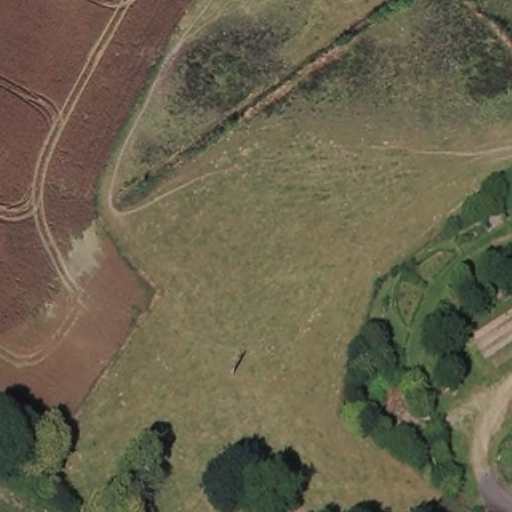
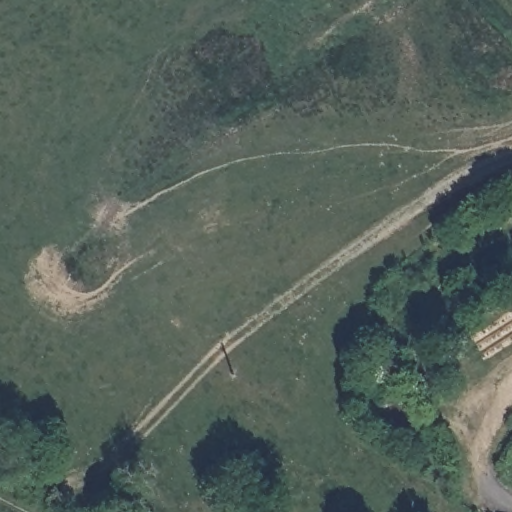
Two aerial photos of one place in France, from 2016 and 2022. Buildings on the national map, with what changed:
[]

